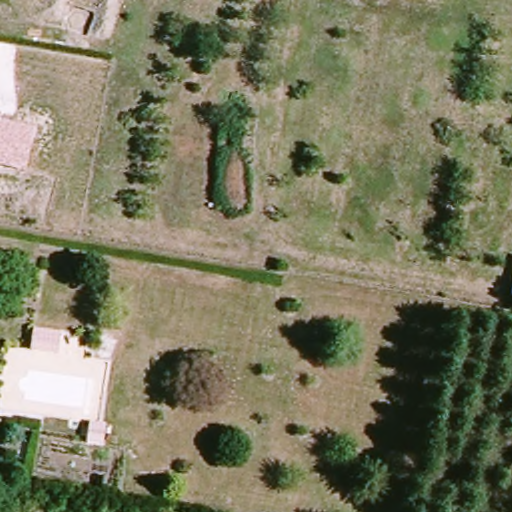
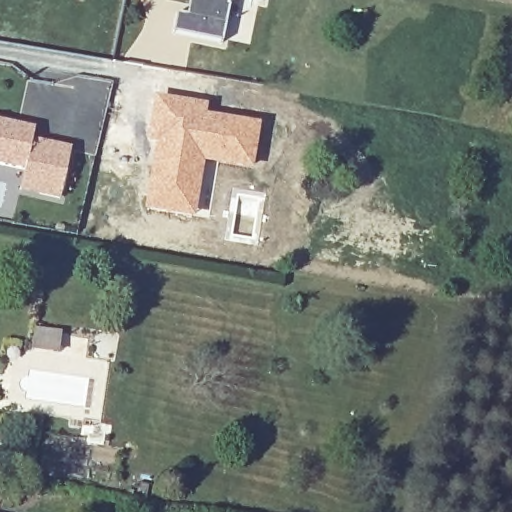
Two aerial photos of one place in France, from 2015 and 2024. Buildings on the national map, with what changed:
new [(185,15),(188,0),(238,0),(231,6),(222,44),(172,34),(176,13),(185,15)]
new [(256,0),(263,0),(262,1),(256,0)]
new [(152,144),(146,143),(153,96),(207,104),(207,114),(260,123),(253,171),(203,164),(193,218),(142,211),(152,144)]
unchanged [(33,128),(25,170),(0,164),(0,121),(33,128)]
unchanged [(70,149),(60,201),(20,193),(25,170),(31,141),(70,149)]

